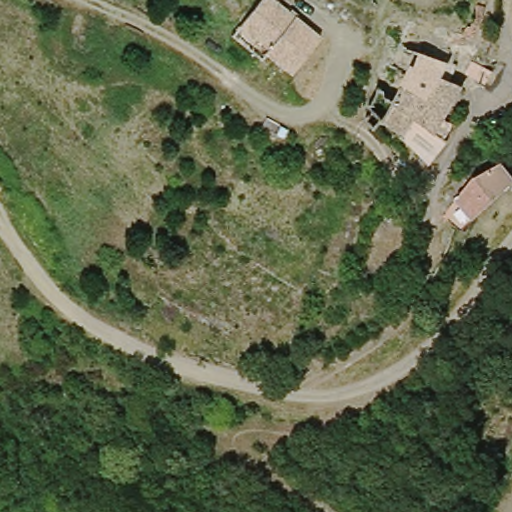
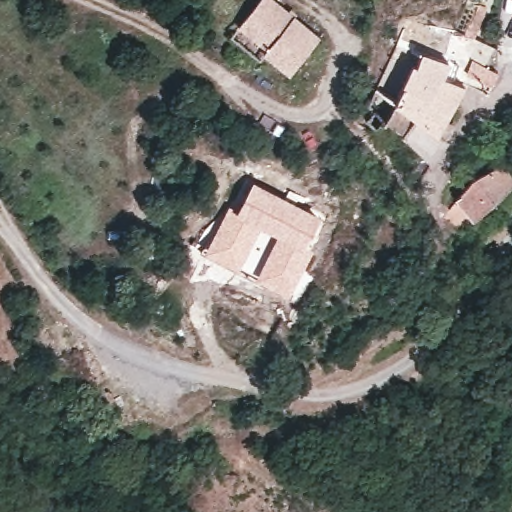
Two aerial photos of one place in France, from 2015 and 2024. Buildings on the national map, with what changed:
unchanged [(280,0),(325,34),(296,73),(272,54),(267,59),(237,34),(266,0),(280,0)]
unchanged [(458,33),(470,37),(467,45),(455,41),(458,33)]
unchanged [(443,60),(439,73),(425,100),(401,88),(418,52),(443,60)]
unchanged [(475,60),(491,68),(495,69),(487,81),(470,73),(475,60)]
unchanged [(460,86),(450,103),(456,106),(442,137),(426,127),(413,117),(393,102),(401,88),(425,100),(439,73),(460,86)]
unchanged [(370,122),(378,113),(388,123),(378,131),(370,122)]
unchanged [(418,182),(411,176),(407,179),(402,169),(398,163),(404,158),(400,154),(410,144),(418,151),(431,164),(418,182)]
unchanged [(490,175),(502,167),(512,183),(512,187),(490,209),(473,227),(455,205),(468,189),(473,187),(481,179),(490,175)]
new [(302,249),(290,270),(298,274),(287,291),(261,278),(281,238),(256,225),(236,265),(210,252),(220,234),(225,238),(236,215),(252,182),(319,217),(302,249)]

